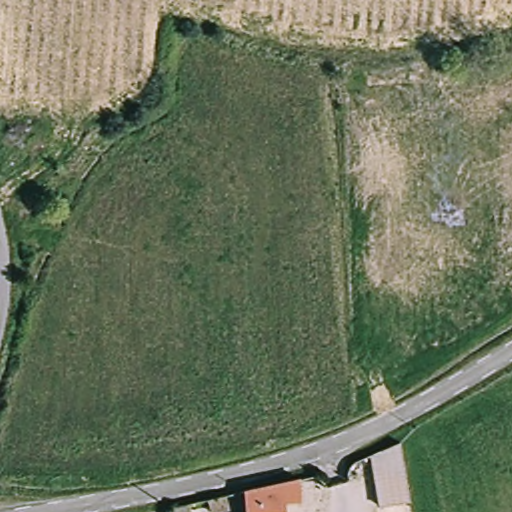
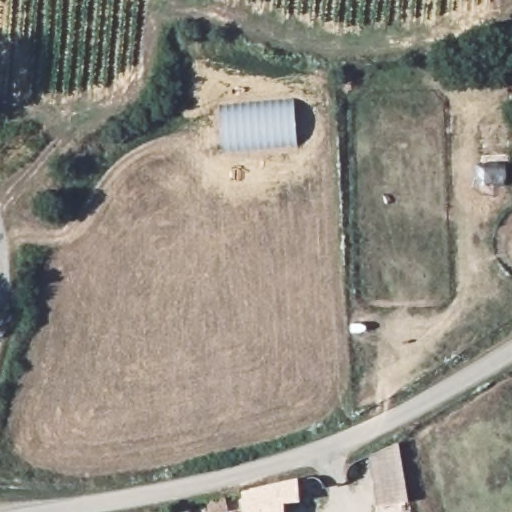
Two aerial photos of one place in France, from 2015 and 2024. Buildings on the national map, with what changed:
new [(224,152),(219,106),(294,100),(298,146),(224,152)]
unchanged [(409,501),(377,507),(369,455),(399,443),(409,501)]
unchanged [(289,512),(252,512),(252,490),(307,474),(304,502),(290,503),(289,512)]
unchanged [(195,502),(195,512),(173,512),(173,507),(195,502)]

